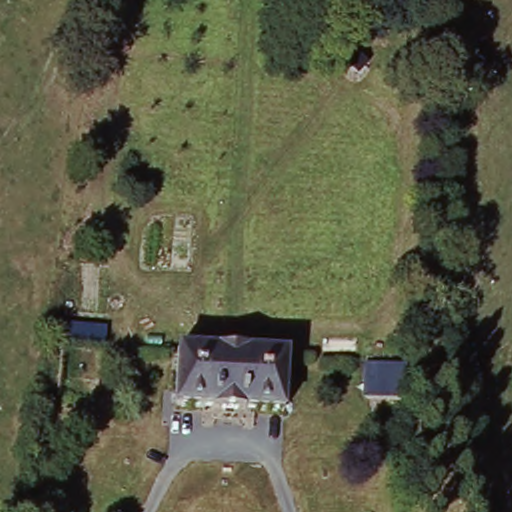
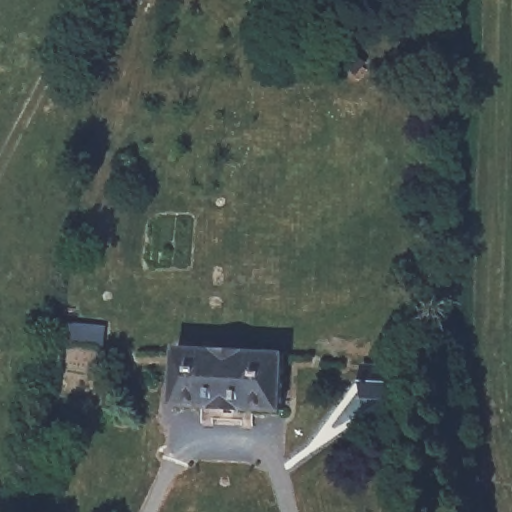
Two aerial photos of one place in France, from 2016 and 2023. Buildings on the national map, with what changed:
unchanged [(214,349),(219,343),(245,344),(248,349),(286,352),(284,411),(260,411),(259,428),(246,426),(244,417),(218,415),(215,426),(201,426),(200,409),(176,407),(179,348),(214,349)]
unchanged [(418,363),(417,398),(370,397),(371,361),(418,363)]

